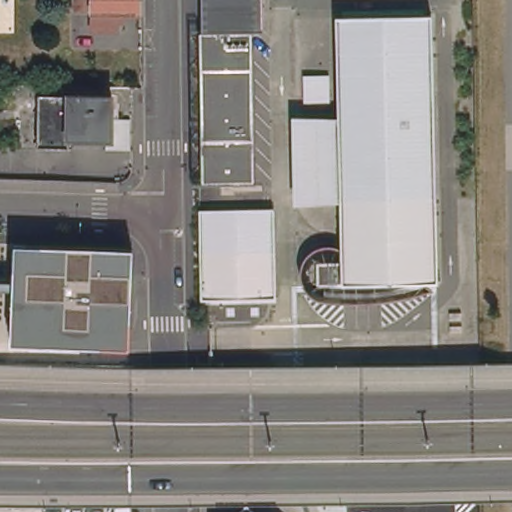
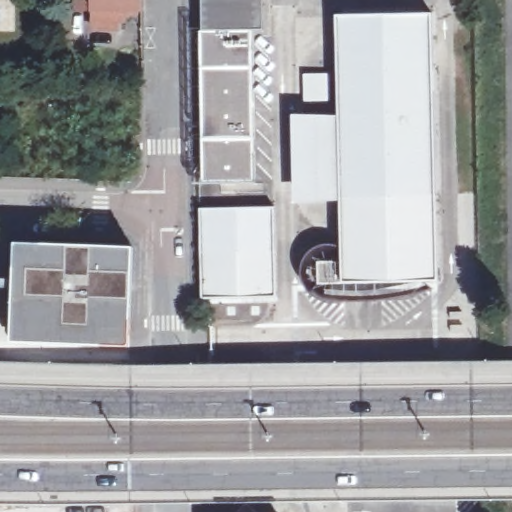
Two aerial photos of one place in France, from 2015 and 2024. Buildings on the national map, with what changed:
unchanged [(94,10),(94,0),(150,0),(150,9),(132,10),(131,15),(122,15),(121,19),(111,18),(102,19),(101,10),(94,10)]
unchanged [(254,31),(256,178),(210,178),(206,0),(267,0),(267,31),(254,31)]
unchanged [(440,290),(320,294),(319,269),(343,269),(341,207),(305,206),(305,195),(305,185),(304,129),(340,129),(339,25),(437,24),(437,168),(438,193),(440,290)]
demolished [(74,143),(73,151),(42,151),(43,98),(47,98),(47,88),(72,88),(114,89),(114,99),(118,99),(117,121),(117,143),(110,143),(74,143)]
unchanged [(202,299),(200,209),(274,207),(275,296),(202,299)]
unchanged [(14,247),(132,249),(131,348),(15,344),(15,290),(0,290),(0,248),(14,247)]

